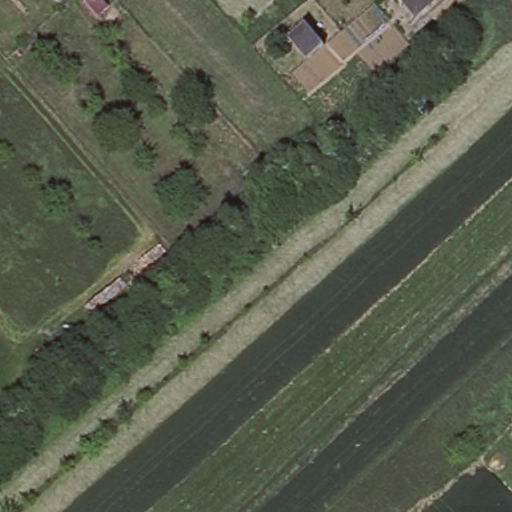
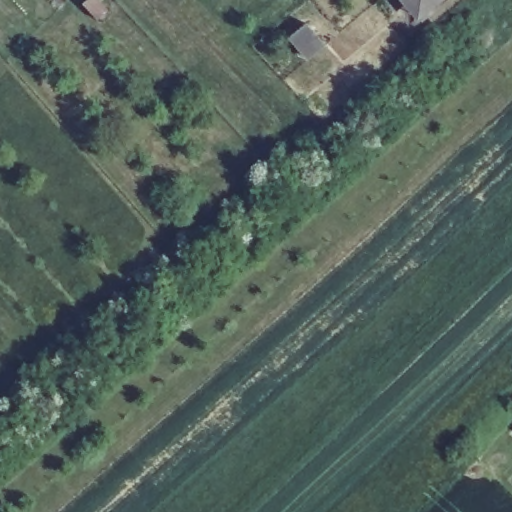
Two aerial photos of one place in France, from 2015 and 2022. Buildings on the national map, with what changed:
unchanged [(108,10),(97,20),(83,5),(89,0),(99,0),(108,10)]
unchanged [(405,2),(403,0),(437,0),(425,12),(418,17),(405,2)]
unchanged [(312,28),(325,46),(309,59),(295,42),(292,38),(289,34),(307,21),(309,24),(312,28)]

